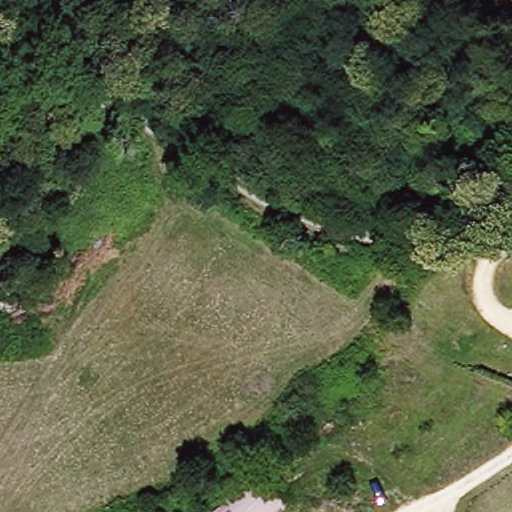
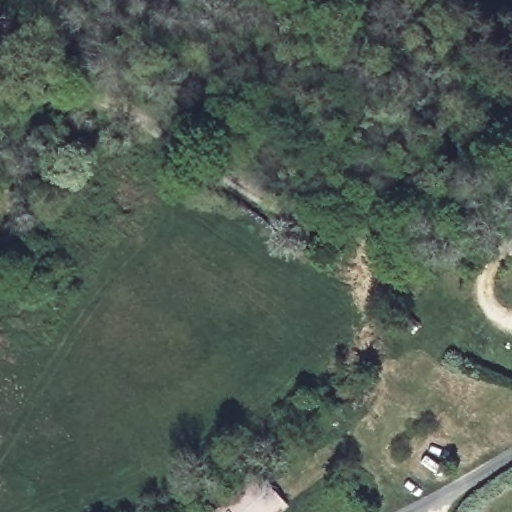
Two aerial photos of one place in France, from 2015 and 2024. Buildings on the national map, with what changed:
unchanged [(285,501),(276,512),(211,512),(250,471),(285,501)]

